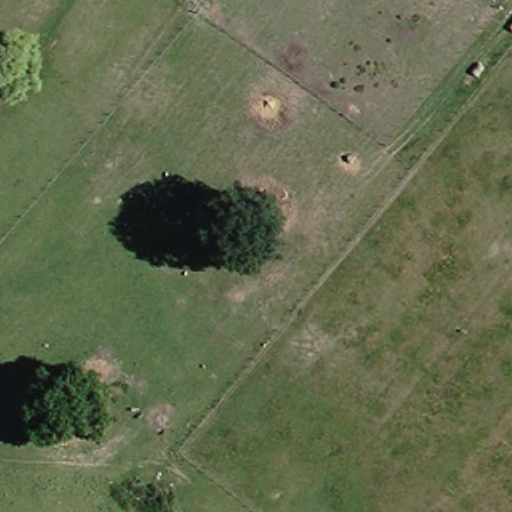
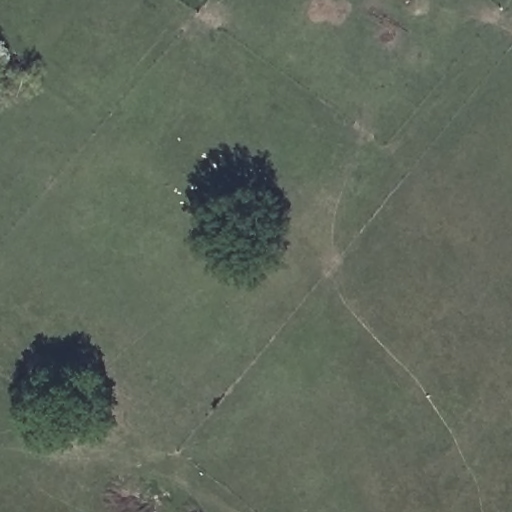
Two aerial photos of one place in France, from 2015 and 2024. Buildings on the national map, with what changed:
[]

